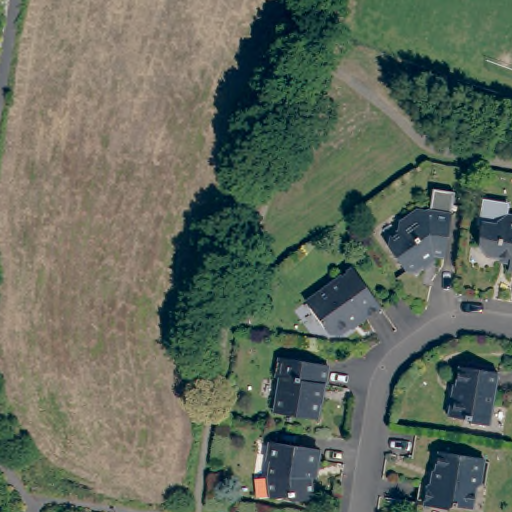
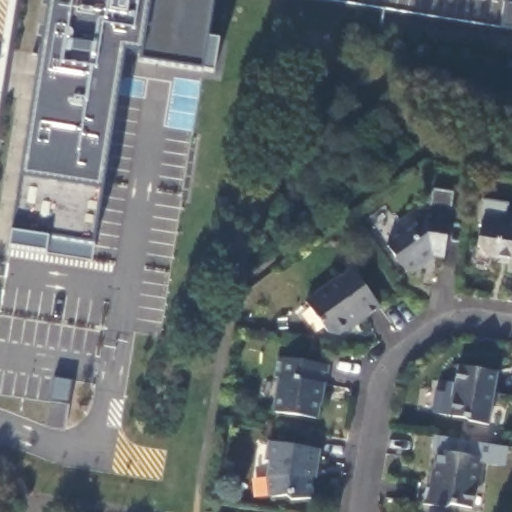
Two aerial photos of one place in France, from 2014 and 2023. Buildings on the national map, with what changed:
new [(221,40),(215,74),(141,61),(142,55),(126,52),(95,246),(92,264),(50,255),(10,249),(22,180),(50,0),(213,0),(206,37),(221,40)]
new [(512,5),(512,31),(501,29),(503,12),(505,4),(512,5)]
unchanged [(430,212),(433,191),(455,195),(445,258),(430,256),(424,260),(423,265),(422,266),(422,268),(413,275),(407,273),(388,248),(390,240),(398,235),(400,225),(419,211),(430,212)]
unchanged [(483,247),(487,225),(501,227),(501,224),(510,217),(512,218),(512,261),(489,257),(483,247)]
unchanged [(307,301),(353,267),(381,305),(366,317),(362,313),(352,321),(351,324),(338,333),(328,331),(307,301)]
unchanged [(327,364),(324,384),(322,383),(316,418),(273,410),(279,377),(275,377),(277,355),(327,364)]
unchanged [(470,421),(465,417),(448,415),(452,393),(454,393),(458,365),(498,371),(489,424),(470,421)]
unchanged [(269,475),(272,460),(268,460),(272,441),(318,448),(316,467),(311,466),(310,476),(312,497),(292,499),(286,495),(272,496),(269,475)]
unchanged [(427,483),(433,478),(438,450),(485,457),(480,483),(476,486),(472,507),(451,503),(447,507),(424,503),(427,483)]

